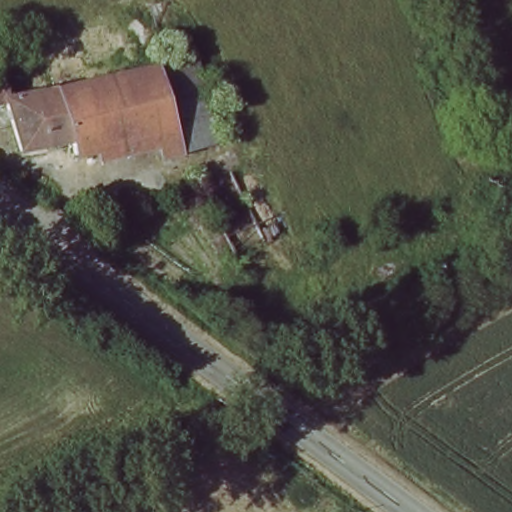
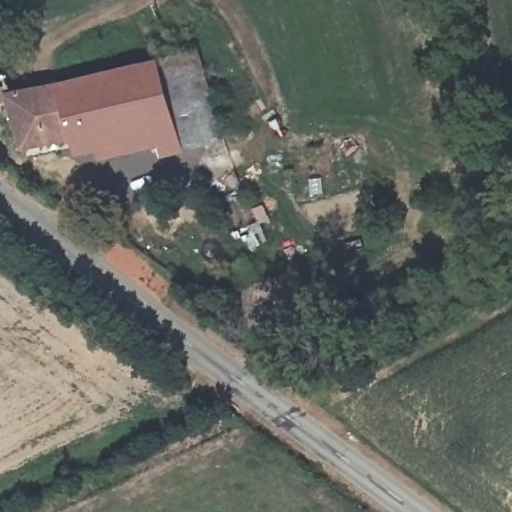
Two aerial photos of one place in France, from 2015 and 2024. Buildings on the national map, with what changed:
unchanged [(155,72),(154,69),(196,56),(219,141),(184,151),(179,152),(155,72)]
unchanged [(158,135),(74,156),(69,142),(20,152),(5,102),(0,104),(0,77),(3,76),(9,98),(154,69),(155,72),(179,152),(164,157),(158,135)]

